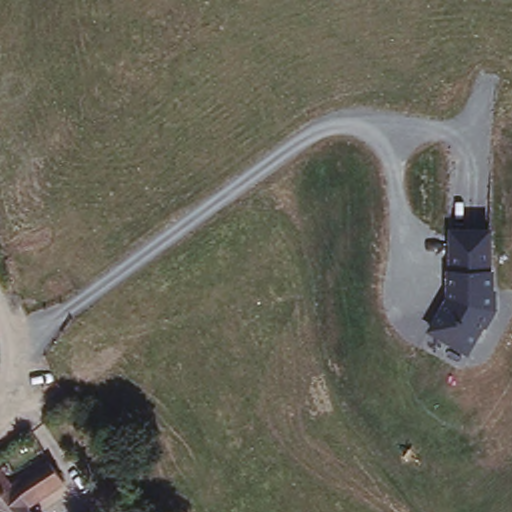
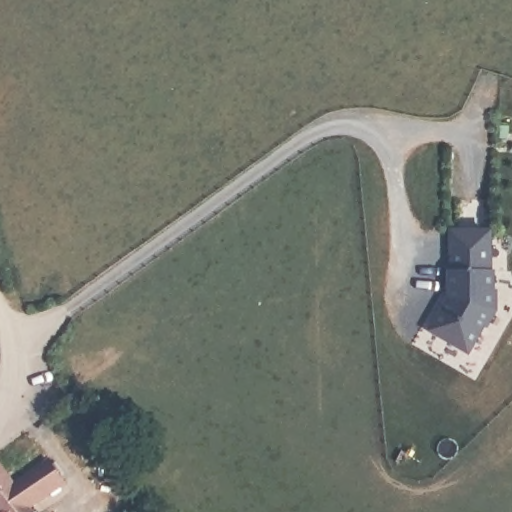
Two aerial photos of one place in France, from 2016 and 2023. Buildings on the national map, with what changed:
unchanged [(448,296),(448,230),(490,230),(489,270),(495,270),(495,311),(467,353),(427,331),(448,296)]
unchanged [(43,452),(64,472),(30,504),(23,512),(9,512),(0,503),(0,471),(11,483),(43,452)]
unchanged [(9,512),(0,512),(0,503),(9,512)]
unchanged [(23,512),(30,504),(39,512),(23,512)]

